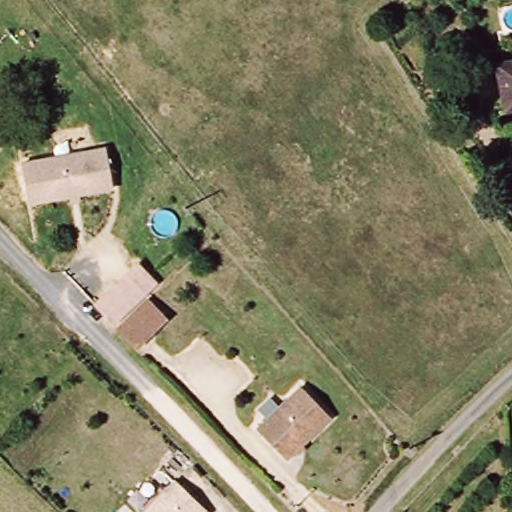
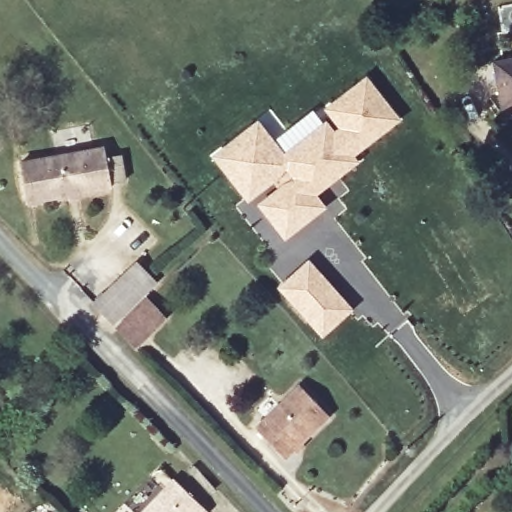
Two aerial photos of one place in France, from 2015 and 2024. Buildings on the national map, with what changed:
unchanged [(508,117),(499,64),(512,62),(512,116),(508,117)]
new [(310,197),(320,209),(285,238),(261,209),(282,192),(272,181),(247,201),(215,161),(255,129),(281,162),(322,127),(330,137),(341,130),(326,111),(362,82),(392,119),(356,149),(355,147),(345,155),(351,163),(333,177),(326,183),(310,197)]
unchanged [(102,144),(112,189),(29,204),(20,160),(102,144)]
unchanged [(90,305),(136,260),(156,282),(146,294),(167,317),(132,348),(90,305)]
new [(305,268),(322,288),(323,287),(346,312),(321,336),(281,291),(305,268)]
unchanged [(285,460),(257,430),(302,387),(330,417),(285,460)]
unchanged [(179,482),(208,512),(148,512),(179,482)]

